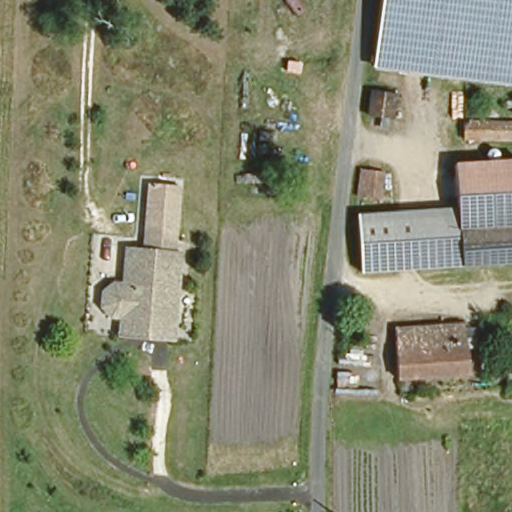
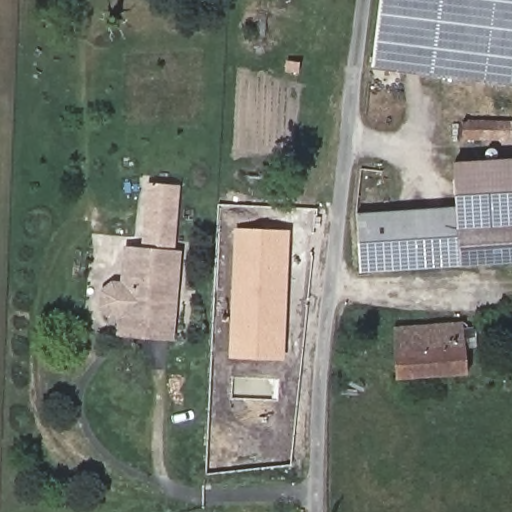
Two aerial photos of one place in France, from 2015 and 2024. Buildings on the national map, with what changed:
unchanged [(512,0),(512,88),(374,71),(383,0),(512,0)]
unchanged [(395,120),(371,117),(372,94),(397,97),(395,120)]
unchanged [(460,117),(512,117),(512,141),(461,142),(460,117)]
unchanged [(357,214),(457,209),(455,163),(512,159),(512,262),(358,267),(357,214)]
unchanged [(381,200),(359,199),(362,174),(383,176),(381,200)]
unchanged [(180,184),(177,248),(141,247),(144,182),(180,184)]
new [(286,362),(230,359),(235,230),(291,232),(286,362)]
unchanged [(111,316),(101,303),(102,292),(112,282),(122,282),(124,246),(141,247),(177,248),(173,318),(120,316),(111,316)]
unchanged [(173,318),(172,338),(119,337),(120,316),(173,318)]
unchanged [(466,375),(402,380),(397,322),(461,318),(466,375)]

